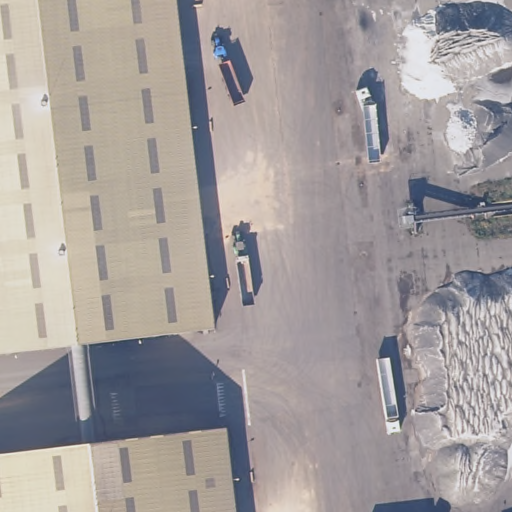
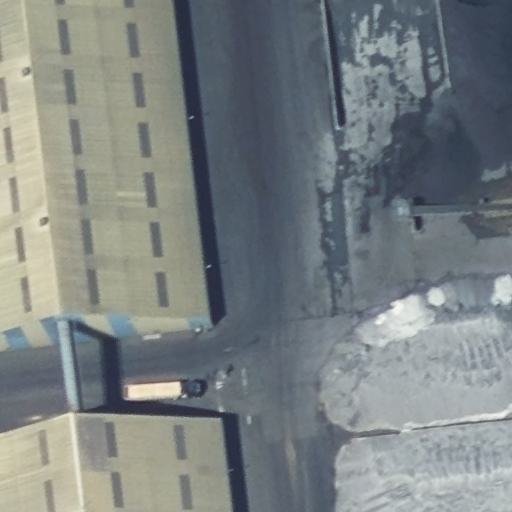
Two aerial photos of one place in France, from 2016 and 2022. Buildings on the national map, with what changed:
unchanged [(0,351),(0,0),(178,0),(217,324),(0,351)]
unchanged [(0,458),(223,431),(233,512),(0,512),(0,458)]

